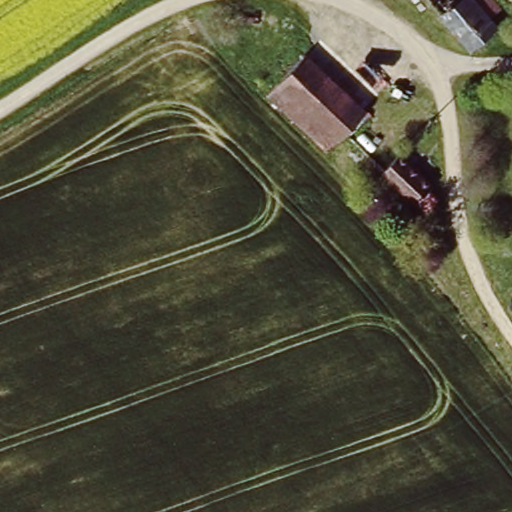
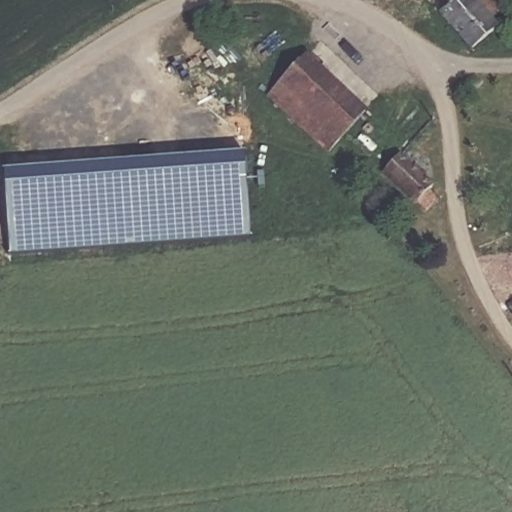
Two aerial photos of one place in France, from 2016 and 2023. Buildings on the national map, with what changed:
unchanged [(503,19),(474,46),(428,0),(501,0),(493,8),(503,19)]
unchanged [(301,61),(371,126),(341,156),(270,92),(301,61)]
new [(9,254),(4,171),(244,153),(250,235),(9,254)]
unchanged [(404,156),(446,196),(427,215),(384,174),(404,156)]

